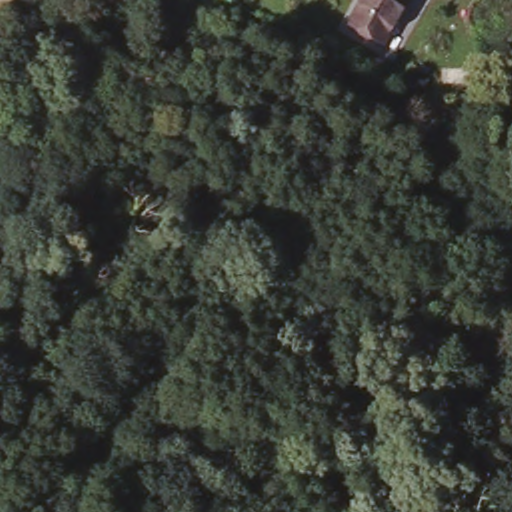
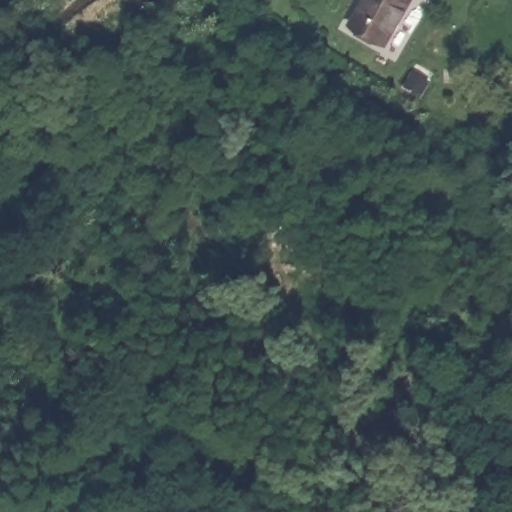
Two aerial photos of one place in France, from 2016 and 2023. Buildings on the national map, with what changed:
unchanged [(340,31),(359,0),(416,0),(385,52),(340,31)]

